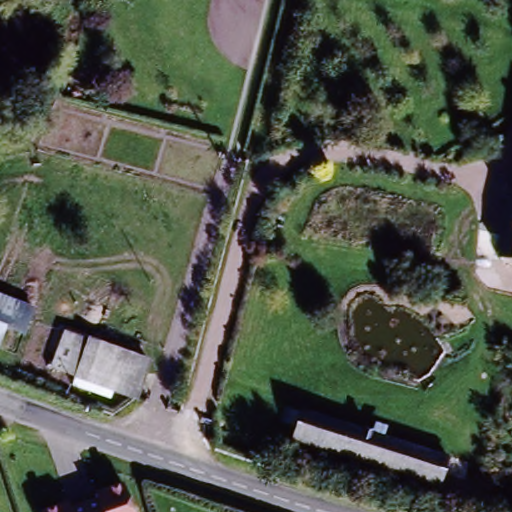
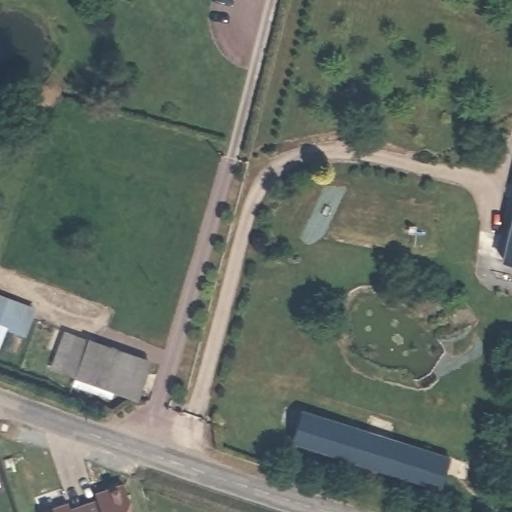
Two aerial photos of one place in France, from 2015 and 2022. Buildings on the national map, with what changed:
unchanged [(495,262),(512,193),(512,266),(495,262)]
unchanged [(0,339),(0,299),(33,309),(21,342),(0,339)]
unchanged [(137,392),(54,364),(66,330),(149,358),(137,392)]
unchanged [(302,443),(285,437),(296,405),(313,411),(457,462),(446,493),(302,443)]
unchanged [(128,512),(87,512),(96,509),(90,493),(118,484),(128,512)]
unchanged [(63,502),(66,512),(36,512),(63,502)]

